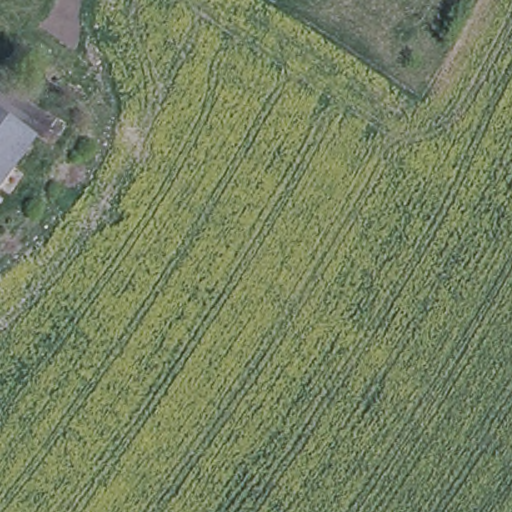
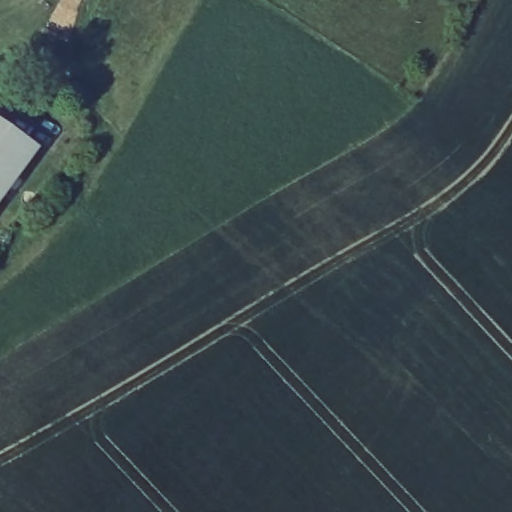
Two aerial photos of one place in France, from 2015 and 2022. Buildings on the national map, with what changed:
unchanged [(25,157),(10,179),(20,186),(5,206),(0,203),(0,138),(22,154),(25,157)]

